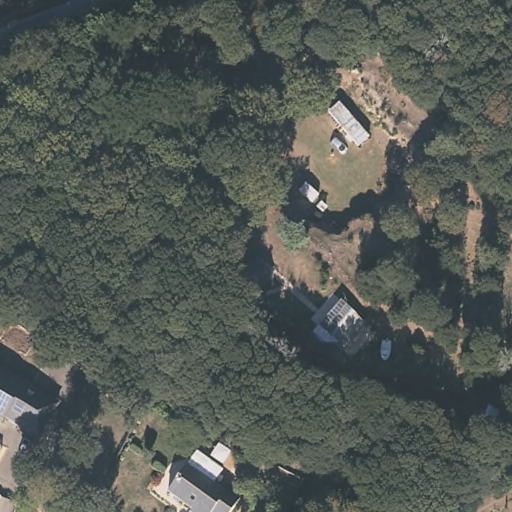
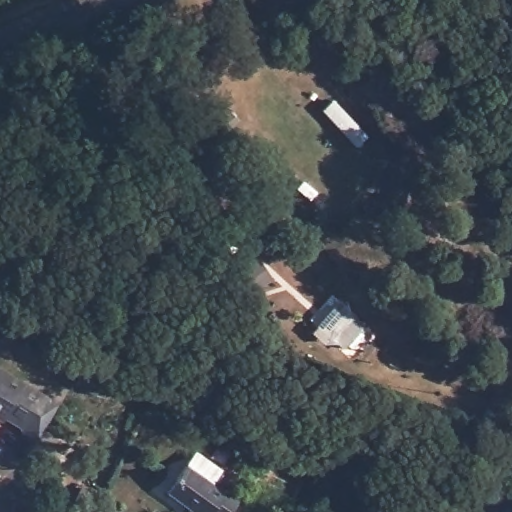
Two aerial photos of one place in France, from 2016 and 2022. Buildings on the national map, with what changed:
unchanged [(328,107),(343,91),(379,129),(362,143),(328,107)]
unchanged [(354,315),(335,335),(320,324),(339,302),(354,315)]
unchanged [(40,438),(20,427),(5,418),(0,419),(0,366),(42,392),(61,403),(40,438)]
unchanged [(2,450),(0,454),(0,449),(2,450)]
unchanged [(219,482),(228,490),(235,487),(245,495),(233,512),(193,512),(193,507),(171,490),(200,451),(226,471),(219,482)]

